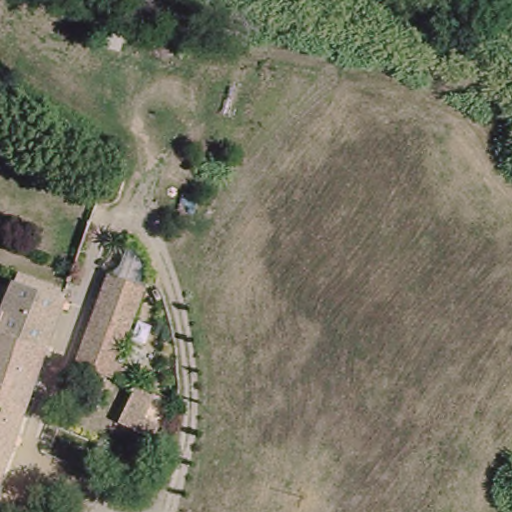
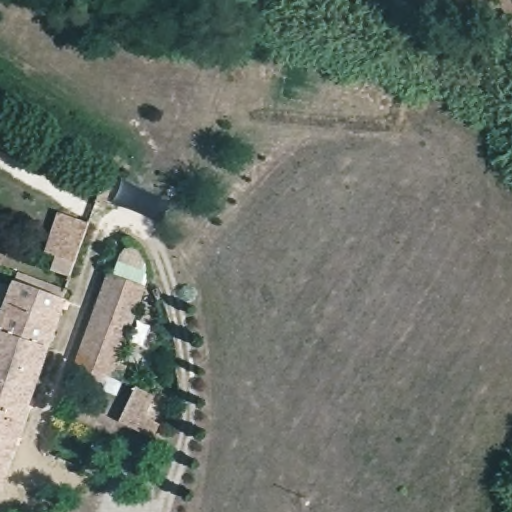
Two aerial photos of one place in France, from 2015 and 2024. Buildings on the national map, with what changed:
new [(89,223),(70,277),(49,270),(55,255),(43,250),(57,211),(89,223)]
unchanged [(0,317),(15,276),(66,295),(0,480),(0,317)]
unchanged [(82,365),(115,276),(151,289),(121,368),(131,372),(127,381),(82,365)]
unchanged [(140,420),(136,431),(112,422),(126,385),(144,392),(135,417),(140,420)]
unchanged [(100,408),(82,401),(87,391),(104,398),(100,408)]

